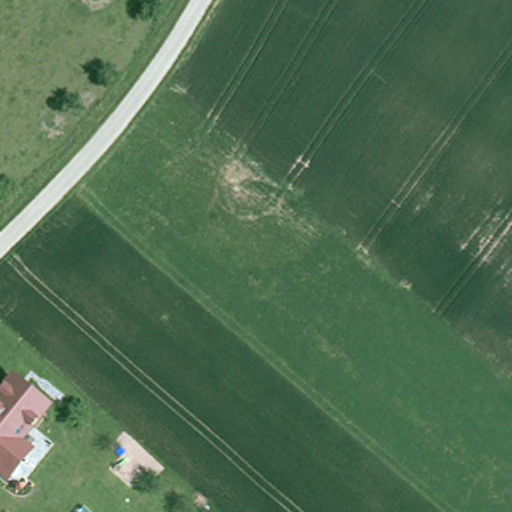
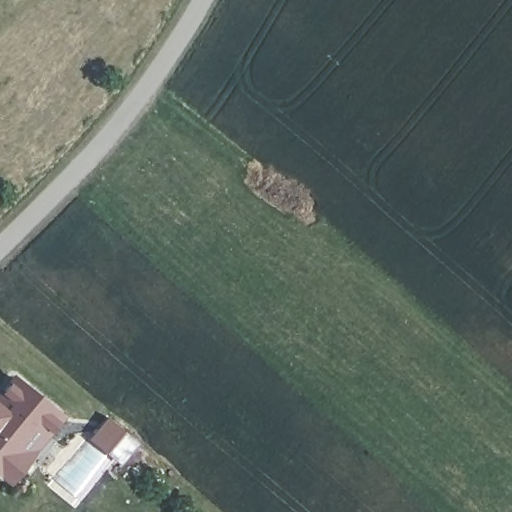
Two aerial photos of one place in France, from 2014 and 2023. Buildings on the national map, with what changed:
unchanged [(51,404),(25,440),(35,448),(7,481),(0,475),(0,380),(11,369),(51,404)]
new [(107,417),(134,439),(124,450),(119,446),(112,454),(90,436),(107,417)]

